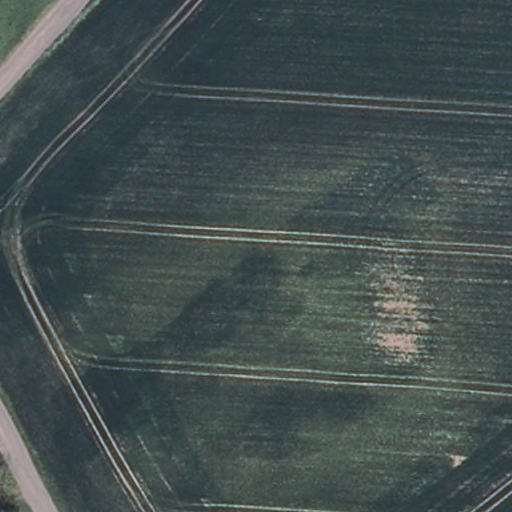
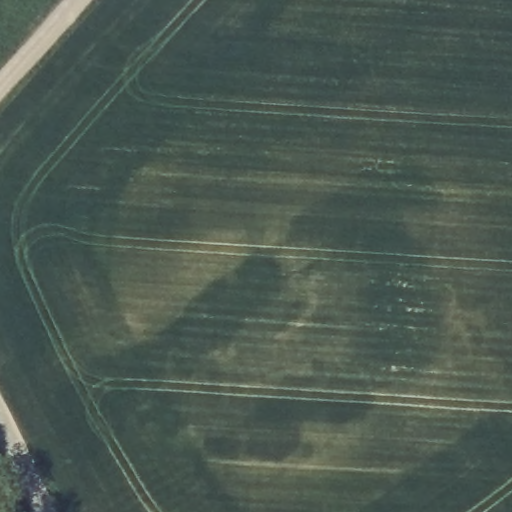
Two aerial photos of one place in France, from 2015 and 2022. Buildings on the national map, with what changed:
[]

